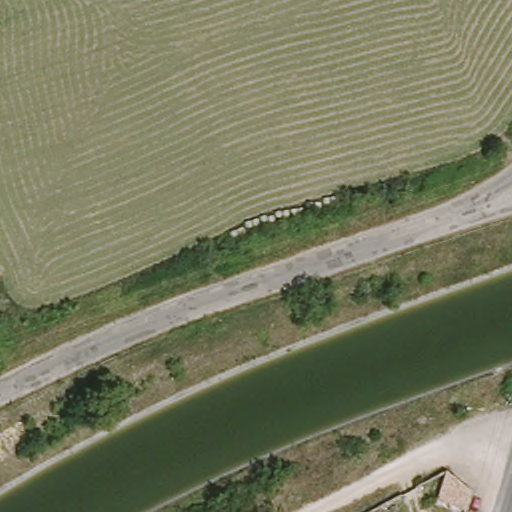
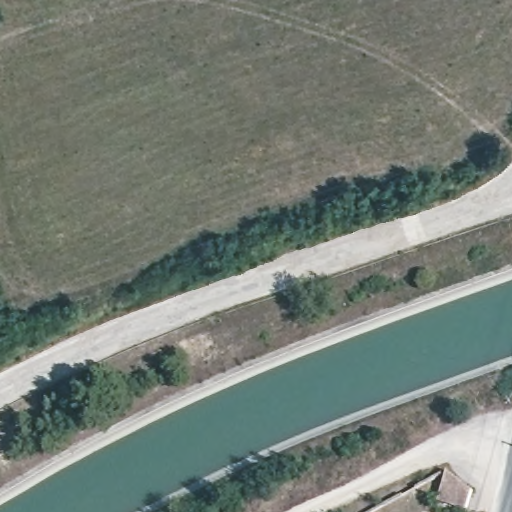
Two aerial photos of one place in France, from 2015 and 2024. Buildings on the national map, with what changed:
unchanged [(471,499),(468,512),(443,512),(436,510),(446,480),(471,499)]

